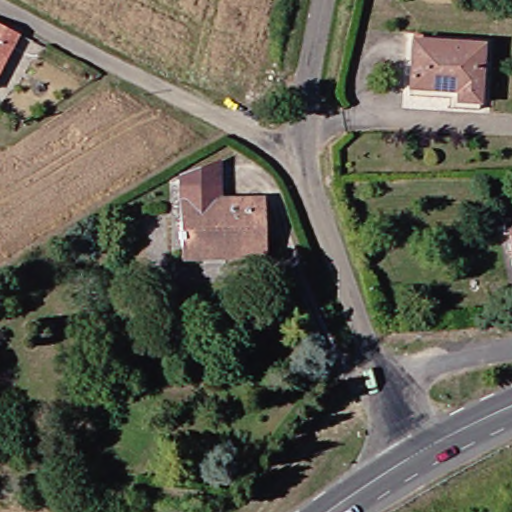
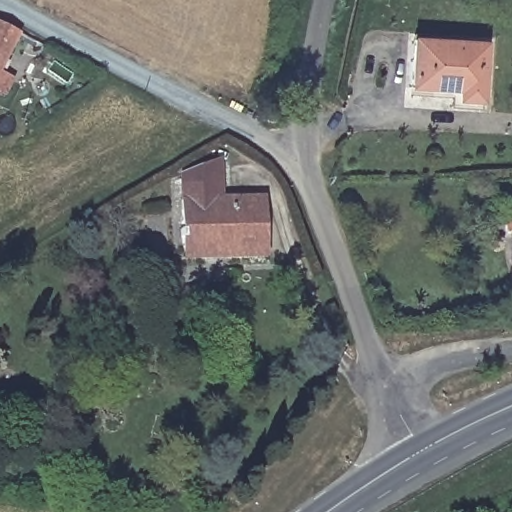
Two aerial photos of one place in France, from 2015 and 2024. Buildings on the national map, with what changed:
unchanged [(12,40),(0,63),(0,33),(12,40)]
unchanged [(471,104),(451,104),(452,92),(404,90),(406,44),(475,48),(471,104)]
unchanged [(198,258),(199,264),(177,266),(175,175),(214,162),(216,200),(261,199),(260,257),(198,258)]
unchanged [(507,229),(512,228),(512,267),(511,267),(507,229)]

